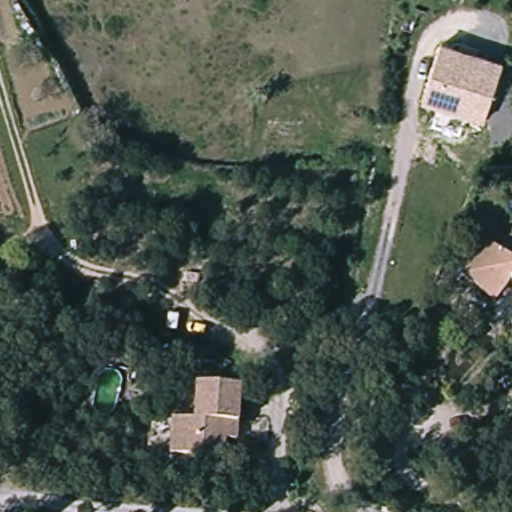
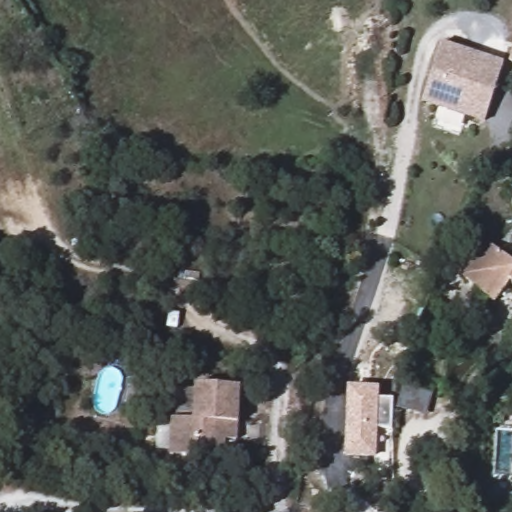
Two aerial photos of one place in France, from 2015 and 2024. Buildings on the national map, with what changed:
unchanged [(503,62),(485,122),(423,102),(442,43),(503,62)]
unchanged [(496,300),(458,279),(479,245),(512,263),(512,284),(510,282),(496,300)]
unchanged [(215,444),(215,462),(174,461),(175,421),(189,420),(191,390),(191,383),(235,385),(235,397),(236,425),(236,442),(215,444)]
new [(379,385),(379,397),(394,397),(392,428),(377,427),(376,456),(344,455),(347,385),(379,385)]
new [(397,409),(404,386),(434,394),(428,417),(397,409)]

